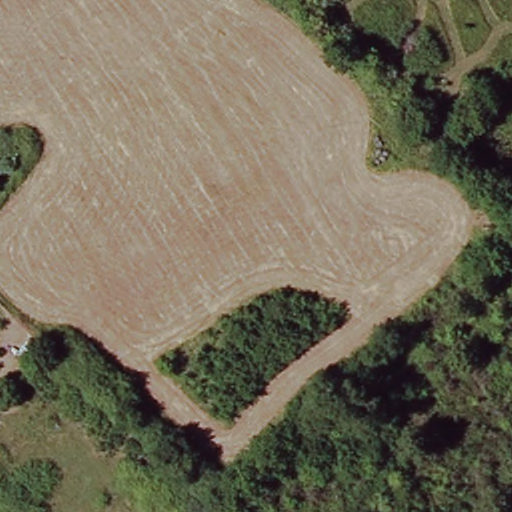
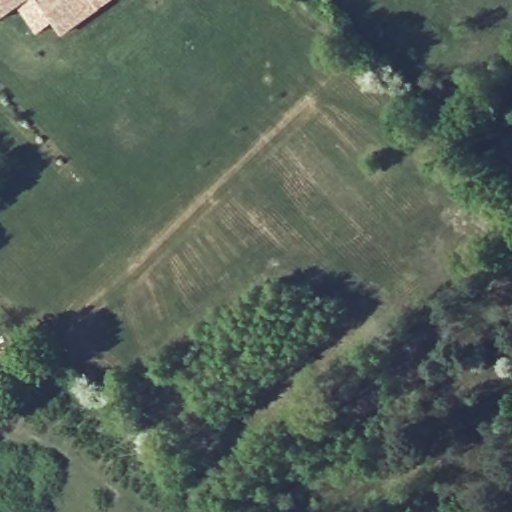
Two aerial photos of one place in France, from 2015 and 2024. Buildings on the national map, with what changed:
new [(0,17),(0,0),(25,0),(0,17)]
new [(40,0),(110,0),(62,34),(40,0)]

